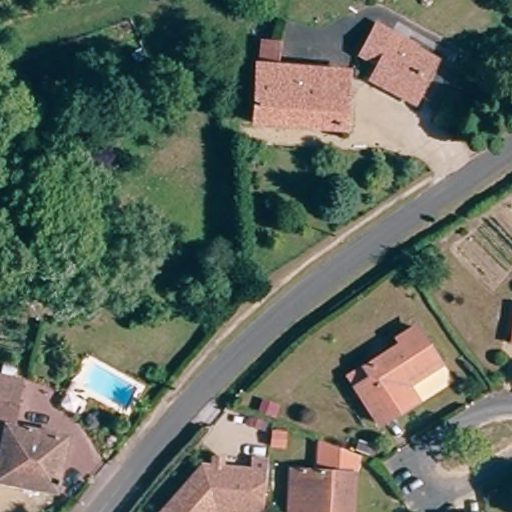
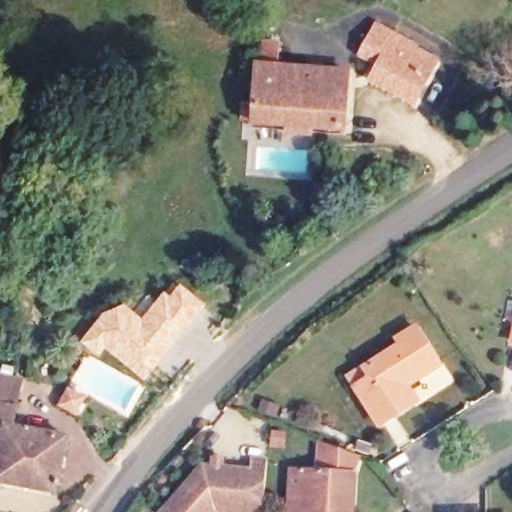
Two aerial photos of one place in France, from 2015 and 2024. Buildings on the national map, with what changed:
unchanged [(414,104),(371,81),(380,65),(361,55),(376,26),(418,49),(417,50),(436,61),(414,104)]
unchanged [(348,131),(258,126),(262,69),(264,69),(265,45),(281,45),(280,70),(351,74),(348,131)]
new [(116,297),(133,310),(148,292),(155,299),(165,288),(170,292),(179,282),(206,304),(143,381),(105,350),(98,357),(79,343),(116,297)]
unchanged [(364,370),(401,345),(397,340),(415,328),(439,365),(404,387),(415,403),(380,426),(356,388),(349,379),(364,370)]
unchanged [(0,483),(0,377),(24,382),(18,409),(13,428),(67,438),(56,494),(0,483)]
new [(68,385),(87,396),(75,417),(55,405),(68,385)]
unchanged [(205,512),(160,512),(156,509),(198,461),(209,462),(209,452),(218,453),(217,463),(246,466),(247,455),(263,456),(262,470),(258,510),(210,505),(205,512)]
unchanged [(354,475),(352,512),(291,512),(293,472),(354,475)]

